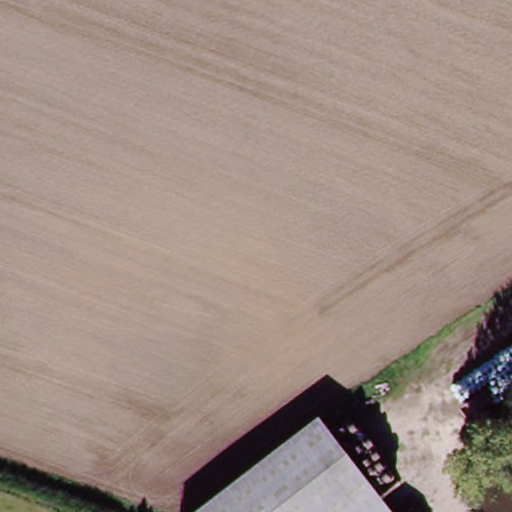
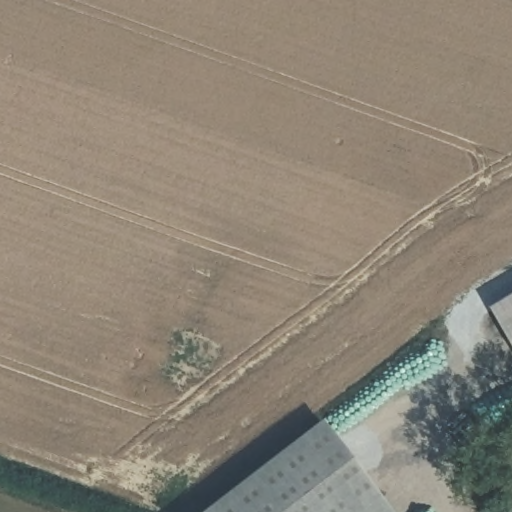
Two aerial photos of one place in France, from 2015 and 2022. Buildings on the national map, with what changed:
new [(490,300),(512,287),(512,337),(490,300)]
unchanged [(322,420),(392,512),(201,512),(322,420)]

